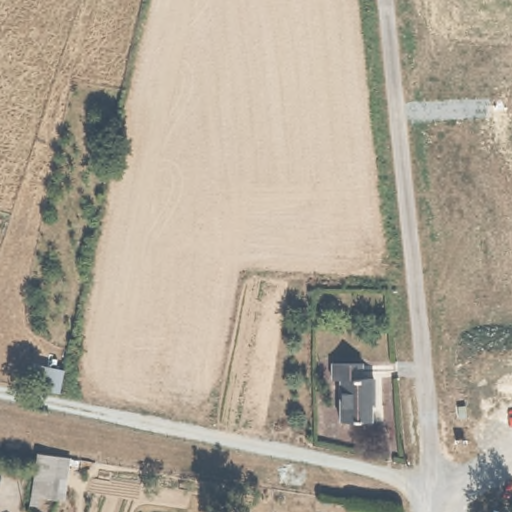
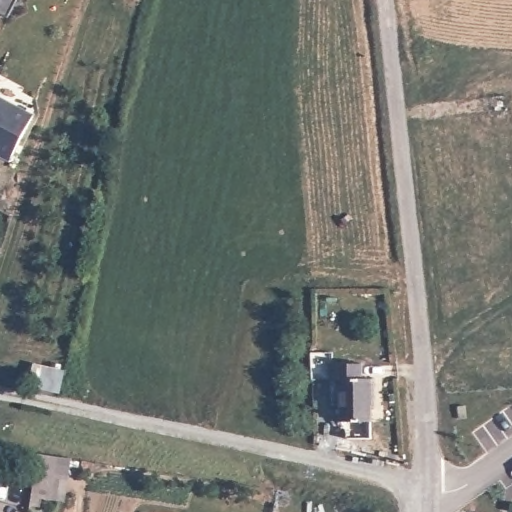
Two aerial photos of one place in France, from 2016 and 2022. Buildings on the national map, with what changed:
new [(0,12),(0,0),(15,0),(7,15),(0,12)]
new [(35,113),(10,161),(0,157),(0,96),(35,113)]
unchanged [(338,380),(332,380),(332,363),(361,363),(362,379),(376,379),(377,410),(372,410),(372,421),(340,422),(338,380)]
new [(31,365),(62,371),(57,392),(36,387),(37,383),(28,381),(31,365)]
unchanged [(66,500),(43,496),(41,506),(30,504),(37,452),(71,457),(66,500)]

